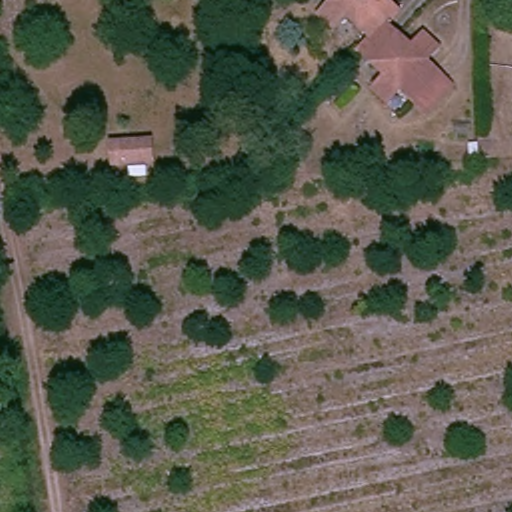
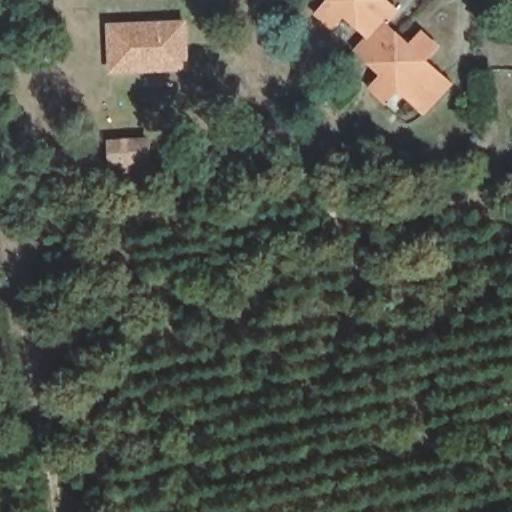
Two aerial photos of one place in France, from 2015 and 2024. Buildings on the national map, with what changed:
unchanged [(380,16),(397,30),(409,42),(420,28),(433,42),(422,54),(435,66),(408,96),(397,86),(384,97),(370,84),(380,70),(354,45),(363,31),(340,10),(328,21),(313,8),(320,0),(390,0),(391,1),(380,16)]
new [(107,75),(106,25),(187,22),(188,72),(107,75)]
unchanged [(105,138),(115,138),(145,136),(146,160),(116,163),(106,163),(105,138)]

